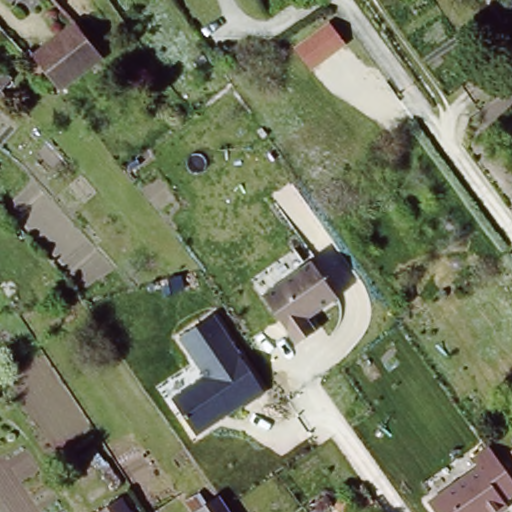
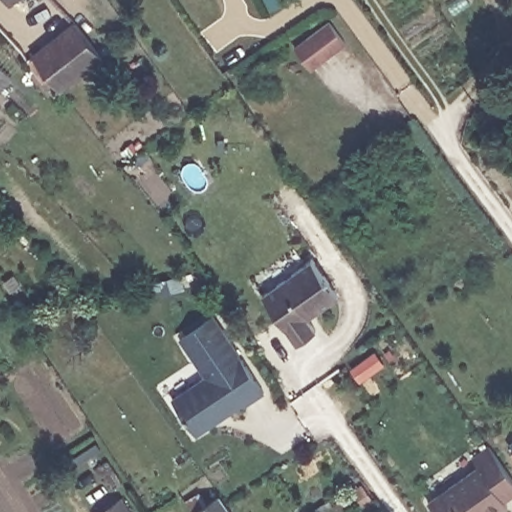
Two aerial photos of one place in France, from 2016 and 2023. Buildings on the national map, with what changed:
unchanged [(18,10),(9,0),(29,0),(18,10)]
unchanged [(329,22),(346,43),(313,69),(296,47),(329,22)]
unchanged [(38,60),(80,27),(109,61),(64,94),(58,86),(55,82),(51,78),(38,60)]
unchanged [(24,90),(15,105),(5,101),(0,108),(0,68),(24,90)]
unchanged [(309,259),(336,297),(306,317),(316,329),(299,343),(265,293),(309,259)]
unchanged [(204,374),(179,337),(214,315),(263,392),(198,432),(171,398),(204,374)]
unchanged [(472,455),(484,446),(512,481),(512,494),(503,501),(507,508),(503,512),(437,512),(429,501),(478,467),(472,455)]
unchanged [(358,499),(359,502),(343,512),(339,512),(336,507),(367,488),(370,492),(358,499)]
unchanged [(228,512),(196,512),(218,498),(228,512)]
unchanged [(102,512),(119,501),(127,512),(102,512)]

